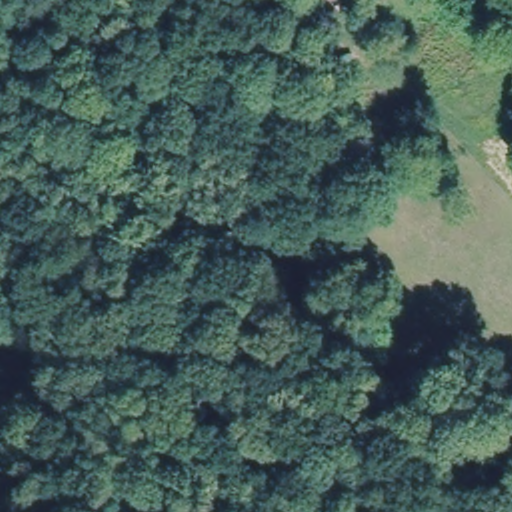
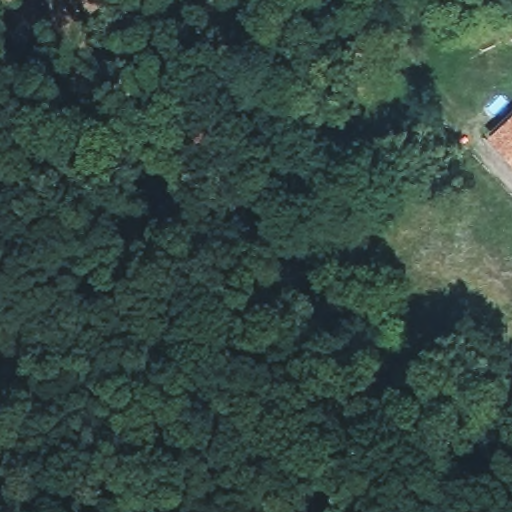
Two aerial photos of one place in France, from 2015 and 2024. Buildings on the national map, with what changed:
unchanged [(358,68),(338,78),(327,62),(345,49),(358,68)]
new [(487,139),(512,116),(512,166),(487,139)]

